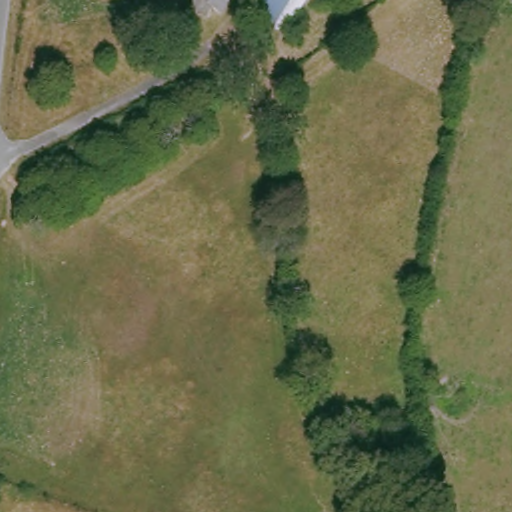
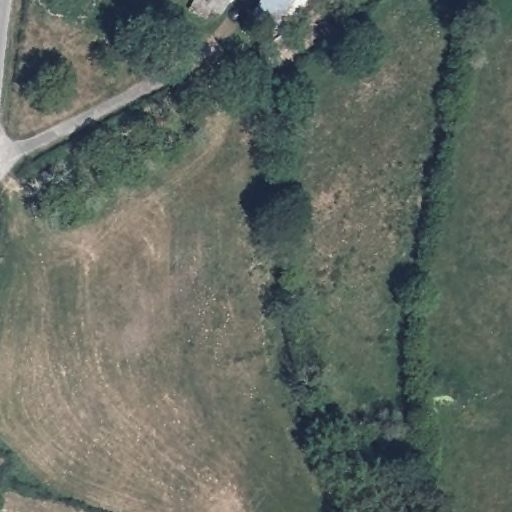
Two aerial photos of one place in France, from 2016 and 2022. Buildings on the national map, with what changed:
unchanged [(198,8),(190,16),(175,5),(179,0),(214,0),(205,12),(198,8)]
unchanged [(258,19),(272,0),(299,0),(277,33),(258,19)]

